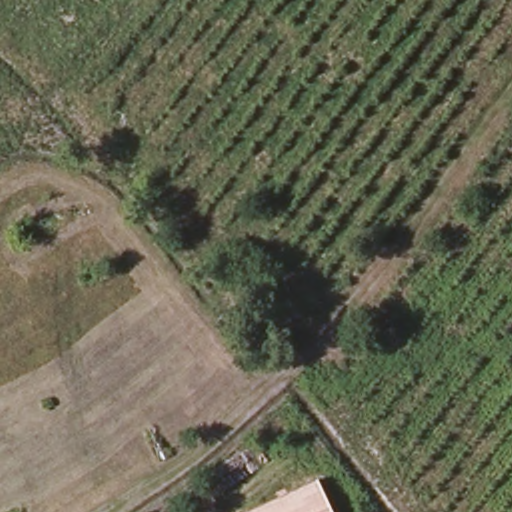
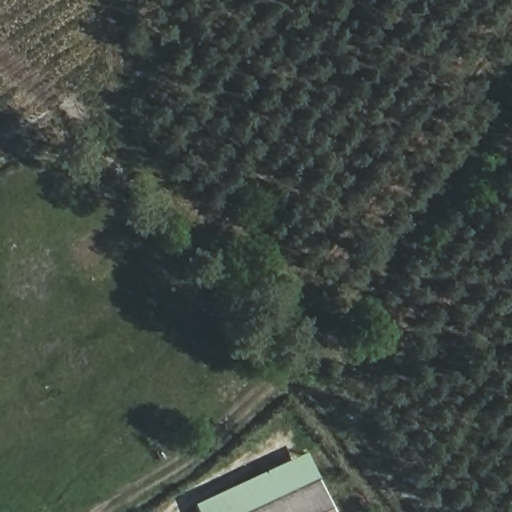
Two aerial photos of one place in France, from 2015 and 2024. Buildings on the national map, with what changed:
new [(251,512),(198,512),(194,504),(306,453),(318,481),(251,512)]
unchanged [(333,512),(251,512),(318,481),(333,512)]

